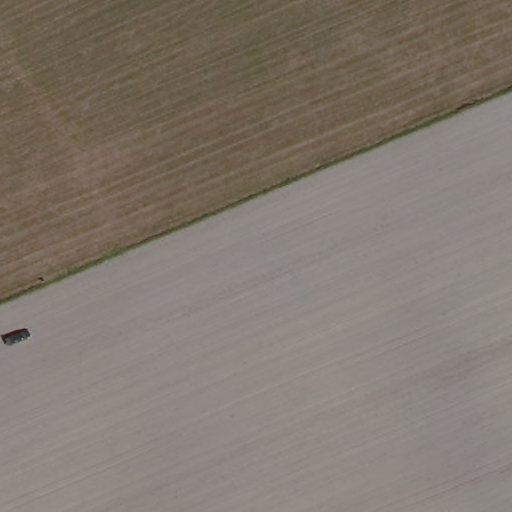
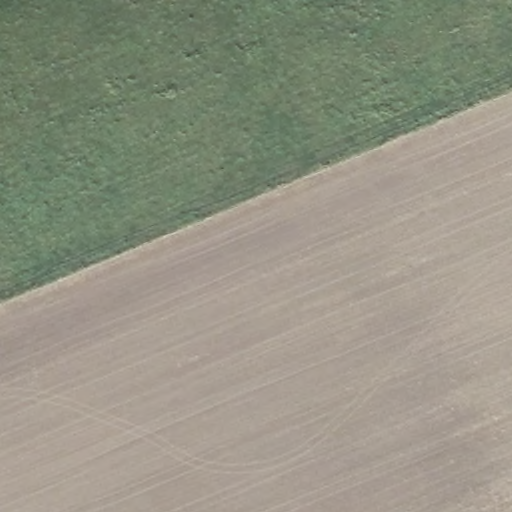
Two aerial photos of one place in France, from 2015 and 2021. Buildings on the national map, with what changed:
[]

